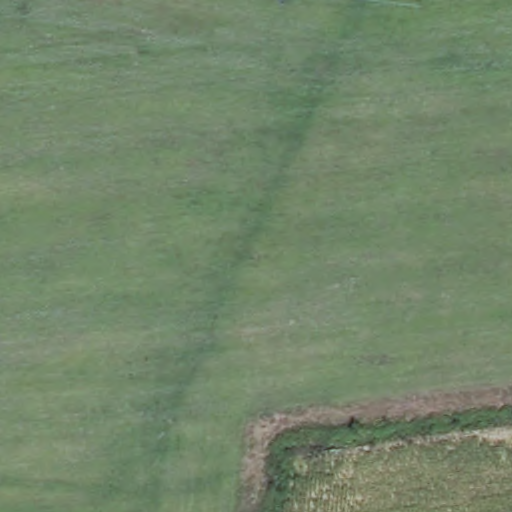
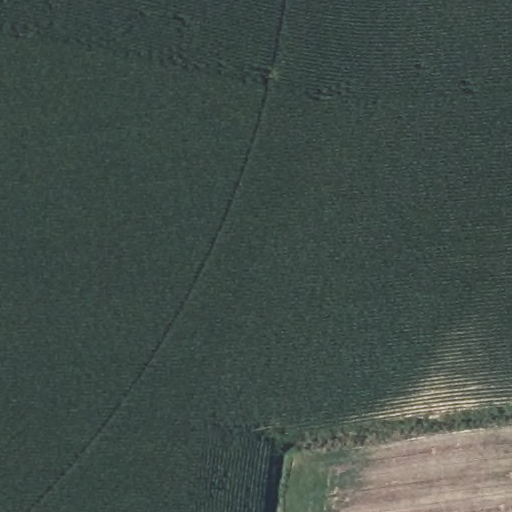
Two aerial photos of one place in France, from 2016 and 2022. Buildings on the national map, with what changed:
[]

